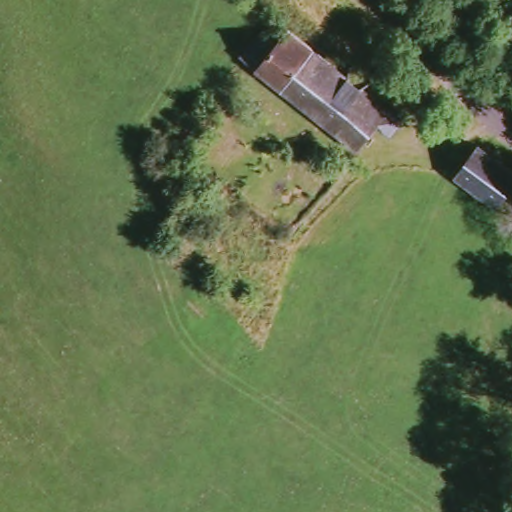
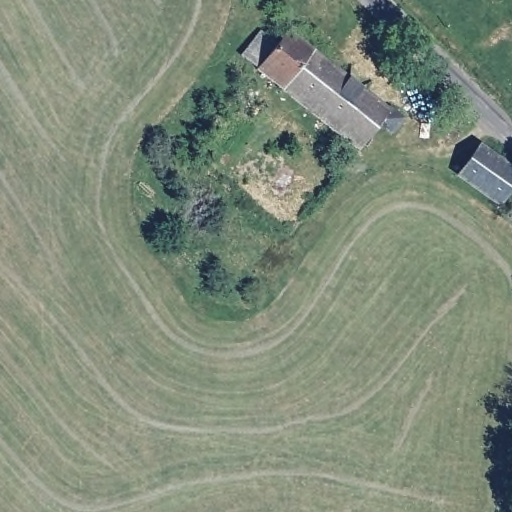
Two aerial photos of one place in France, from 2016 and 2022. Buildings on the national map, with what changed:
unchanged [(405,119),(395,133),(383,125),(363,152),(263,79),(246,66),(265,39),(282,51),(292,36),(405,119)]
unchanged [(494,209),(452,180),(473,151),(512,177),(512,184),(494,209)]

